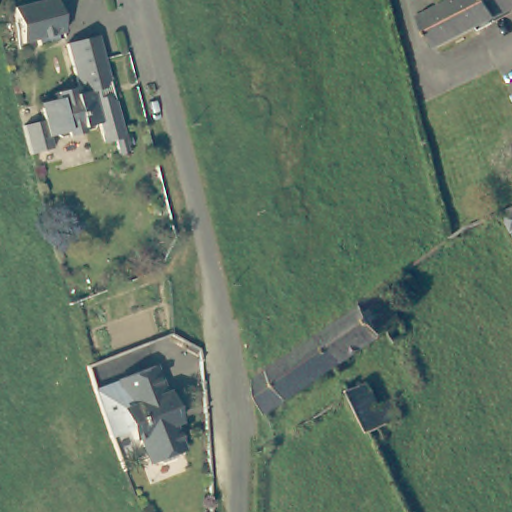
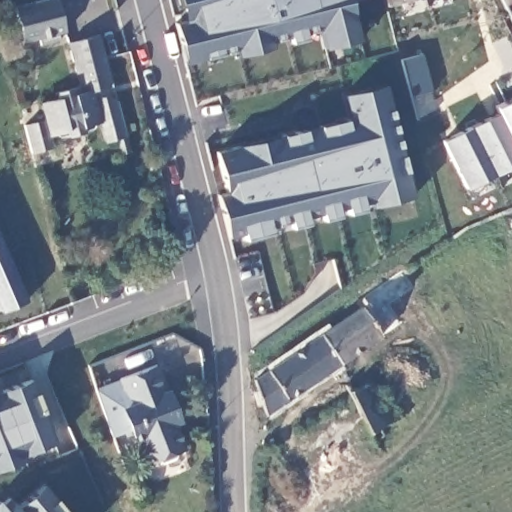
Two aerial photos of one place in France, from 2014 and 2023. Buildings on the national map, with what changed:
unchanged [(19,41),(11,8),(34,1),(41,0),(54,0),(55,3),(62,31),(55,34),(56,40),(36,45),(34,38),(19,41)]
new [(324,48),(320,30),(304,33),(306,36),(291,40),(271,44),(272,48),(240,57),(237,49),(185,63),(176,23),(182,21),(177,0),(349,0),(360,39),(324,48)]
new [(385,0),(409,0),(386,6),(385,0)]
demolished [(425,21),(460,3),(459,0),(512,0),(512,11),(438,49),(425,21)]
new [(512,0),(512,21),(502,0),(512,0)]
unchanged [(34,101),(52,97),(52,91),(50,91),(49,88),(75,80),(67,45),(97,37),(109,80),(114,101),(127,154),(116,157),(112,141),(99,144),(94,123),(79,126),(79,128),(81,128),(81,131),(62,136),(60,129),(44,134),(47,146),(23,151),(17,125),(37,120),(34,101)]
new [(372,206),(362,209),(272,231),(245,238),(243,232),(226,237),(216,195),(226,192),(215,151),(349,116),(342,94),(385,84),(413,197),(372,206)]
new [(440,140),(500,113),(496,106),(512,98),(512,165),(465,189),(440,140)]
unchanged [(512,223),(508,225),(501,211),(512,206),(512,223)]
new [(0,311),(0,240),(26,301),(0,311)]
unchanged [(397,333),(270,412),(255,372),(368,297),(397,333)]
new [(154,366),(163,390),(170,388),(182,423),(175,425),(186,454),(146,469),(132,431),(112,437),(95,389),(154,366)]
demolished [(161,393),(164,392),(174,422),(170,429),(177,449),(170,454),(168,460),(156,465),(151,460),(142,462),(135,438),(129,439),(116,397),(121,395),(115,380),(152,367),(161,393)]
new [(32,378),(56,441),(37,449),(24,456),(25,459),(7,466),(0,468),(0,389),(32,378)]
unchanged [(367,381),(381,406),(391,401),(398,417),(381,425),(384,433),(372,440),(347,391),(367,381)]
new [(2,504),(10,495),(17,505),(44,484),(66,512),(0,512),(0,502),(2,504)]

